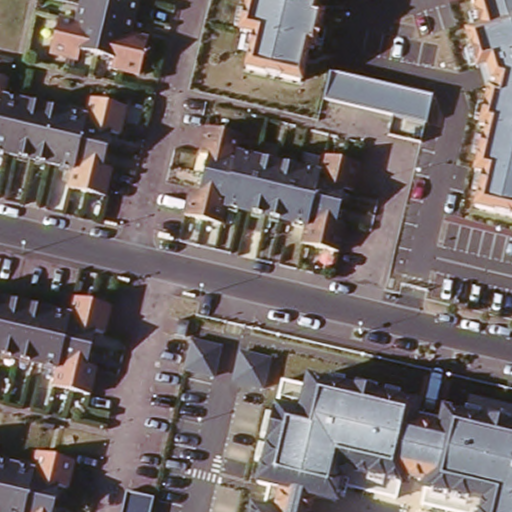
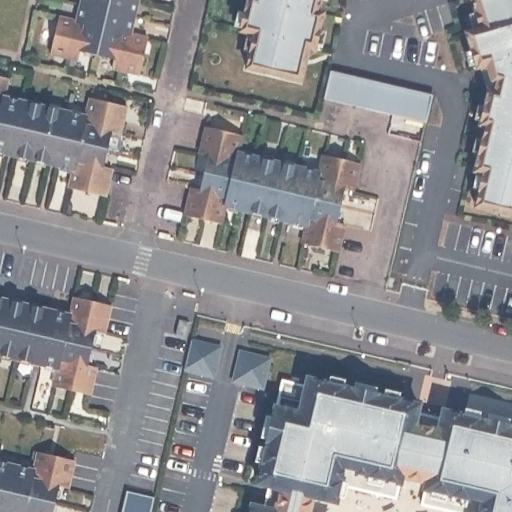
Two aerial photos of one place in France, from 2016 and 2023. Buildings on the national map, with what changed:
unchanged [(73,62),(45,55),(54,19),(73,22),(78,0),(128,0),(131,1),(123,35),(126,36),(141,40),(132,76),(106,70),(108,61),(75,53),(73,62)]
unchanged [(249,37),(240,35),(246,0),(316,0),(313,15),(318,17),(313,46),(306,45),(299,76),(243,67),(249,37)]
unchanged [(487,0),(512,0),(512,209),(485,204),(490,168),(483,166),(492,121),(489,120),(493,96),(500,98),(504,79),(496,76),(490,60),(482,61),(474,37),(488,31),(481,2),(487,0)]
unchanged [(432,96),(427,124),(325,101),(331,72),(432,96)]
unchanged [(0,86),(0,80),(1,80),(0,86)]
unchanged [(84,100),(121,108),(114,136),(106,134),(96,169),(106,170),(100,198),(63,189),(68,168),(0,152),(0,102),(79,120),(84,100)]
unchanged [(208,121),(246,129),(244,147),(319,165),(322,146),(367,166),(344,255),(302,250),(307,229),(233,205),(229,227),(185,213),(208,121)]
unchanged [(74,297),(110,307),(103,334),(94,332),(86,366),(95,368),(88,396),(53,387),(58,365),(0,353),(0,303),(68,319),(74,297)]
unchanged [(185,339),(175,336),(179,320),(188,322),(185,339)]
unchanged [(193,338),(222,346),(215,376),(187,370),(193,338)]
unchanged [(241,351),(273,359),(265,389),(234,381),(241,351)]
unchanged [(422,492),(424,485),(401,481),(401,485),(353,477),(345,505),(310,500),(307,512),(250,512),(252,507),(265,510),(269,490),(257,485),(275,408),(284,385),(305,387),(309,376),(418,402),(416,422),(435,427),(441,409),(512,427),(512,512),(478,512),(480,504),(422,492)]
unchanged [(0,444),(0,439),(1,439),(0,444)]
unchanged [(42,447),(50,450),(78,456),(71,484),(63,482),(55,512),(10,512),(0,509),(0,461),(36,469),(42,447)]
unchanged [(155,498),(151,512),(122,512),(126,493),(155,498)]

